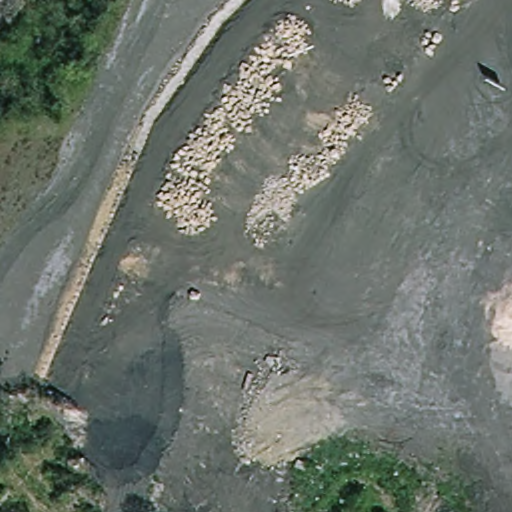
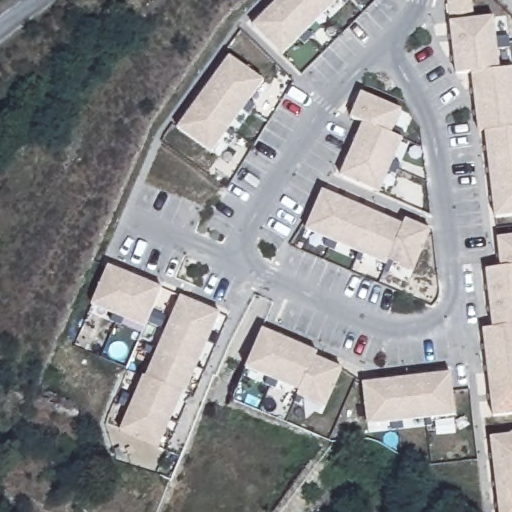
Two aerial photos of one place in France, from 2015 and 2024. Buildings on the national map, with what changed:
new [(283,56),(252,25),(277,0),(339,0),(283,56)]
new [(496,219),(486,131),(478,132),(471,74),(457,75),(450,22),(448,0),(473,0),(475,18),(495,16),(500,69),(512,67),(512,217),(496,219)]
new [(212,153),(177,128),(230,54),(265,79),(212,153)]
new [(379,192),(340,177),(363,123),(351,118),(362,92),(403,108),(393,133),(403,138),(379,192)]
new [(414,272),(388,261),(385,265),(305,231),(323,190),(404,224),(406,218),(433,230),(414,272)]
new [(493,417),(484,328),(492,327),(486,268),(501,267),(497,237),(512,235),(512,414),(493,417)]
new [(147,328),(92,305),(109,265),(164,288),(147,328)]
new [(186,394),(183,393),(160,448),(120,432),(144,375),(146,376),(181,296),(222,313),(186,394)]
new [(326,409),(297,397),(299,392),(246,370),(263,329),(320,351),(317,357),(343,368),(326,409)]
new [(369,426),(364,382),(452,372),(455,416),(369,426)]
new [(499,512),(491,436),(512,434),(512,512),(499,512)]

